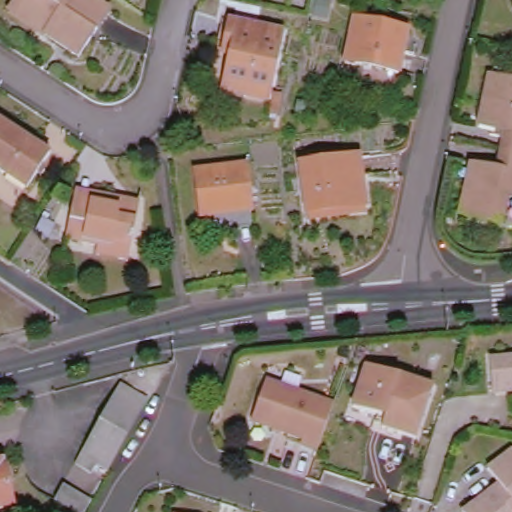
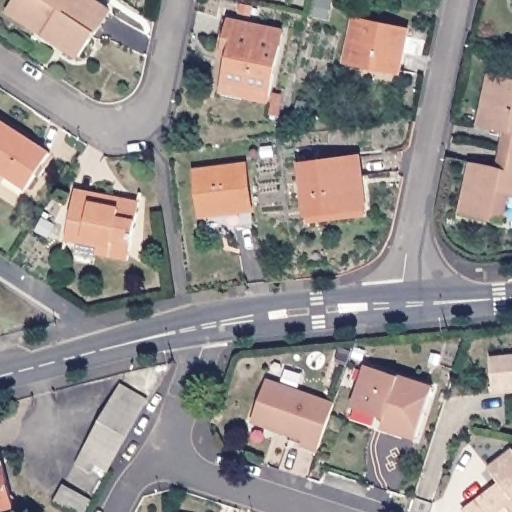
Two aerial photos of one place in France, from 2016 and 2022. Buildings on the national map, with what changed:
unchanged [(15,0),(95,0),(112,11),(80,56),(46,34),(9,10),(15,0)]
unchanged [(347,62),(356,19),(410,31),(401,73),(347,62)]
unchanged [(247,97),(246,97),(245,101),(224,97),(224,92),(222,92),(230,56),(224,55),(231,21),(284,32),(271,96),(270,102),(247,97)]
unchanged [(481,126),(491,76),(512,79),(512,133),(481,126)]
unchanged [(0,119),(51,152),(28,187),(0,169),(0,119)]
unchanged [(309,217),(307,208),(302,165),(360,157),(366,201),(367,209),(309,217)]
unchanged [(509,196),(502,222),(462,215),(473,162),(511,170),(512,164),(512,196),(509,196)]
unchanged [(197,172),(246,165),(252,209),(236,212),(235,207),(204,212),(197,172)]
unchanged [(99,245),(67,239),(76,197),(77,187),(93,191),(113,195),(124,197),(141,201),(131,251),(129,259),(97,254),(99,245)]
unchanged [(496,397),(492,363),(512,361),(512,395),(496,397)]
unchanged [(418,437),(384,427),(388,415),(382,413),(381,417),(355,407),(371,364),(436,387),(418,437)]
unchanged [(297,446),(299,442),(247,422),(262,382),(331,405),(331,406),(328,415),(315,452),(297,446)]
unchanged [(82,457),(122,383),(148,398),(107,472),(82,457)]
unchanged [(496,488),(498,492),(504,487),(490,468),(512,452),(512,512),(467,512),(466,511),(496,488)]
unchanged [(14,506),(0,509),(0,463),(4,462),(14,506)]
unchanged [(90,500),(84,512),(83,512),(57,499),(64,487),(90,500)]

